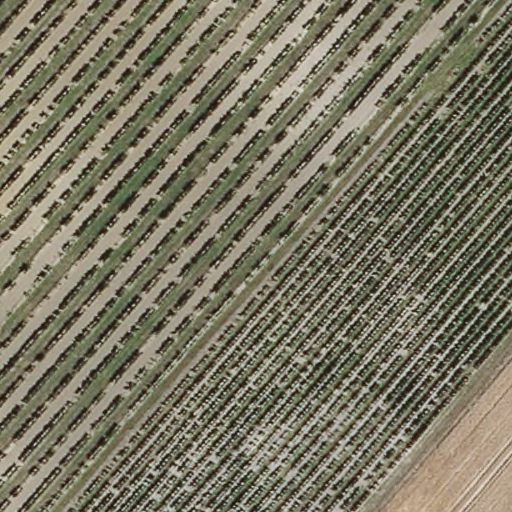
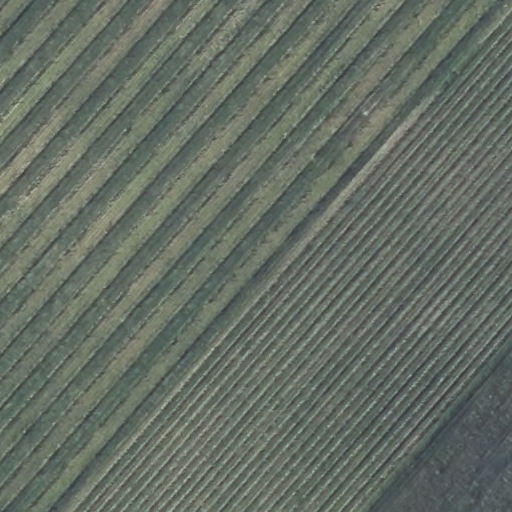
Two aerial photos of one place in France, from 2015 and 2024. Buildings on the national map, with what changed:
[]

